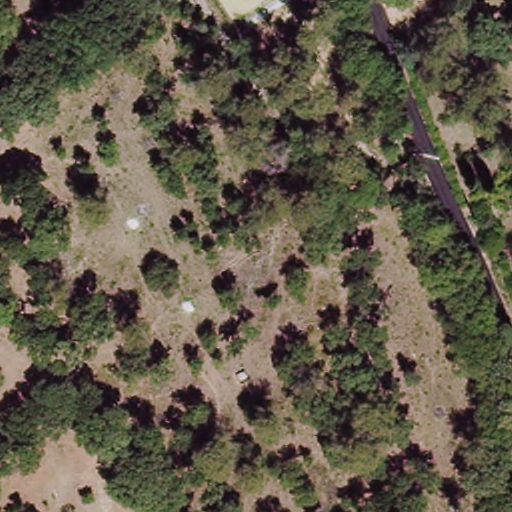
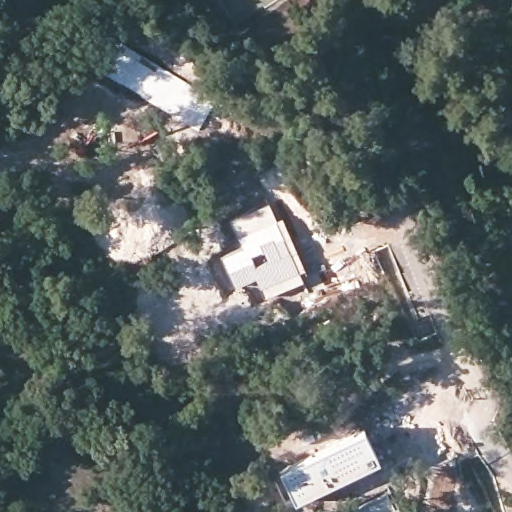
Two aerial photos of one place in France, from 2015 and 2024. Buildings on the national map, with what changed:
new [(243,248),(238,236),(282,218),(304,272),(300,274),(304,283),(266,301),(257,282),(238,291),(222,258),(243,248)]
new [(363,427),(379,460),(293,504),(277,469),(363,427)]

